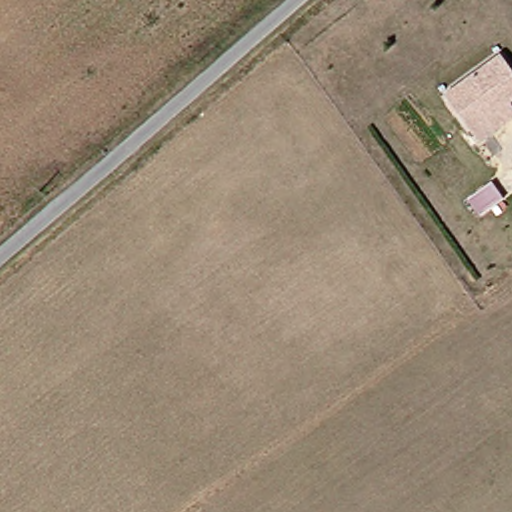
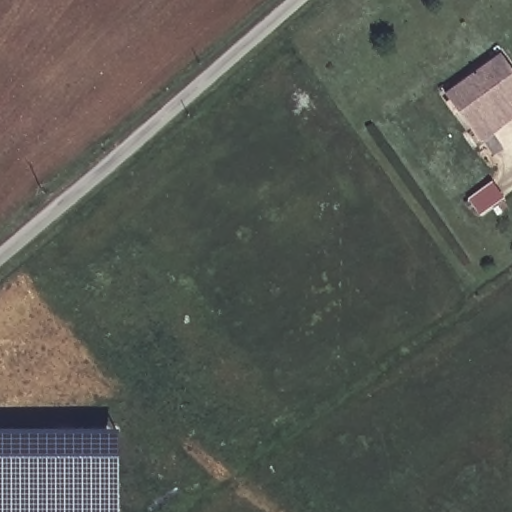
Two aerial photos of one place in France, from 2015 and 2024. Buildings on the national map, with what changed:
unchanged [(495,127),(478,138),(445,90),(502,50),(512,64),(512,96),(508,99),(512,104),(512,116),(495,127)]
unchanged [(512,185),(512,193),(493,206),(481,189),(504,173),(512,185)]
new [(0,512),(0,430),(119,430),(118,512),(0,512)]

